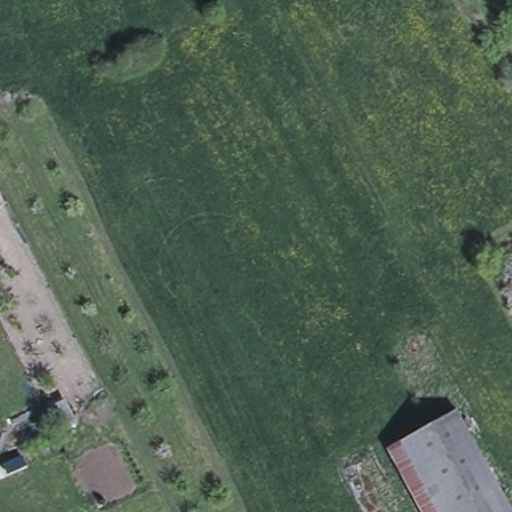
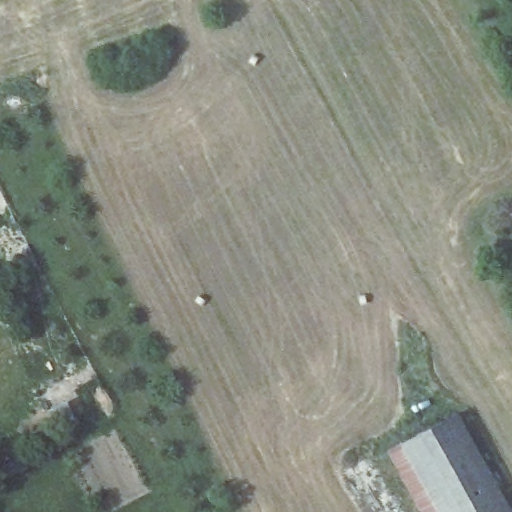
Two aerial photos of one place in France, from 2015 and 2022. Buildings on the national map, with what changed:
unchanged [(512,507),(512,512),(427,512),(393,450),(460,413),(512,507)]

